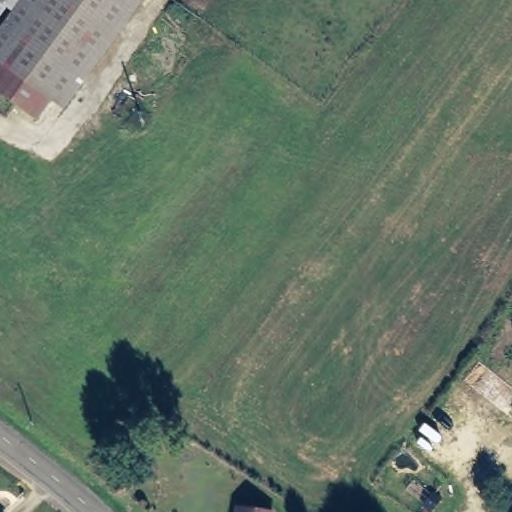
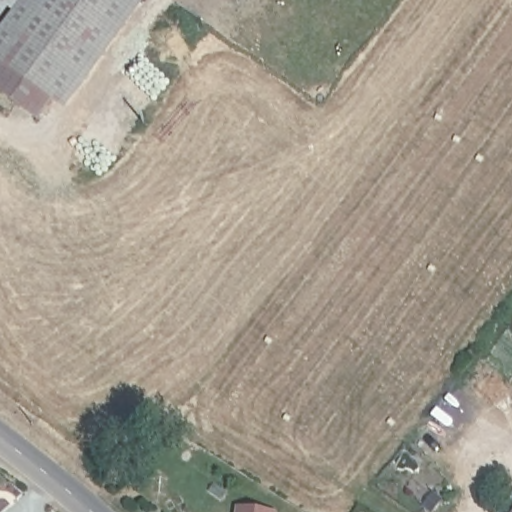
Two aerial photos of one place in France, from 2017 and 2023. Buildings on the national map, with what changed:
unchanged [(0,0),(1,0),(0,2),(0,0)]
unchanged [(0,57),(0,17),(11,2),(12,0),(111,0),(45,91),(0,57)]
unchanged [(35,114),(0,89),(0,57),(45,91),(35,114)]
unchanged [(272,507),(272,512),(235,512),(236,501),(272,507)]

